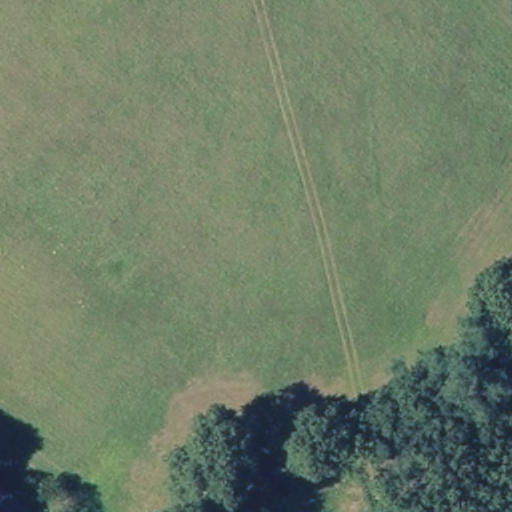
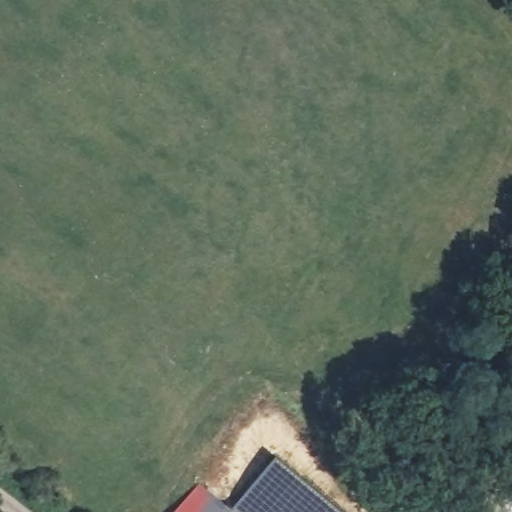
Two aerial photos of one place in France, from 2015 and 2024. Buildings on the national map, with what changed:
new [(337,512),(235,512),(232,510),(275,459),(337,512)]
new [(198,485),(232,512),(174,512),(198,485)]

